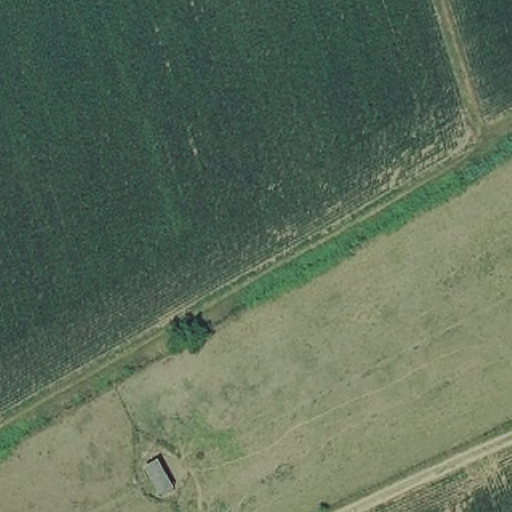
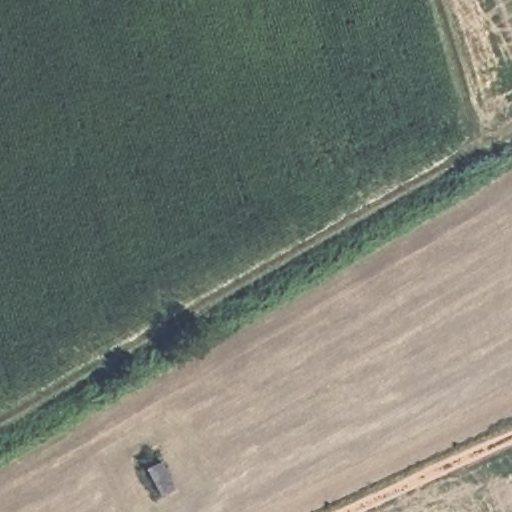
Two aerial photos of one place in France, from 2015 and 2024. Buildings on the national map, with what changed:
unchanged [(164,489),(153,469),(170,458),(179,482),(164,489)]

